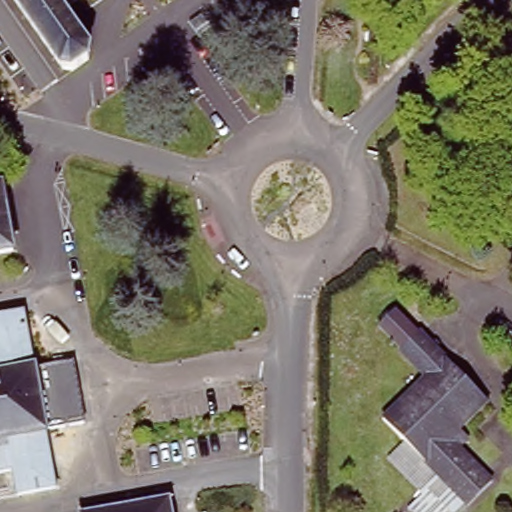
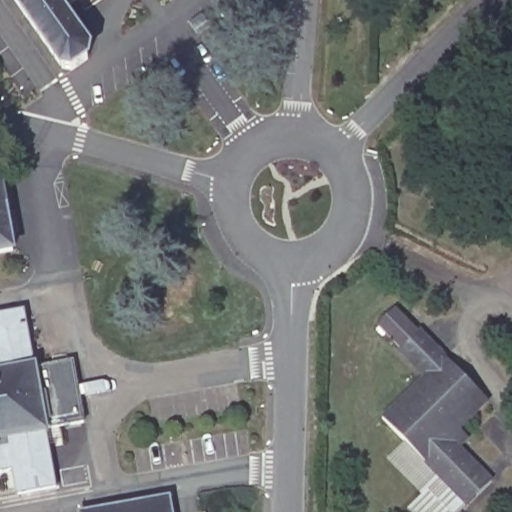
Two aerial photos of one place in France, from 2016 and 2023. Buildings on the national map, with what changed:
unchanged [(87,58),(75,68),(62,66),(17,0),(74,0),(63,8),(90,48),(87,58)]
unchanged [(8,247),(0,248),(0,205),(8,247)]
unchanged [(23,309),(35,366),(71,359),(82,419),(45,426),(55,484),(18,491),(12,467),(0,469),(0,313),(23,309)]
unchanged [(470,434),(460,444),(467,451),(491,476),(466,499),(439,473),(440,472),(382,414),(426,371),(423,368),(401,346),(421,327),(442,349),(488,396),(480,404),(460,424),(470,434)]
unchanged [(466,499),(453,512),(429,512),(408,503),(439,473),(466,499)]
unchanged [(167,502),(169,512),(110,512),(167,502)]

